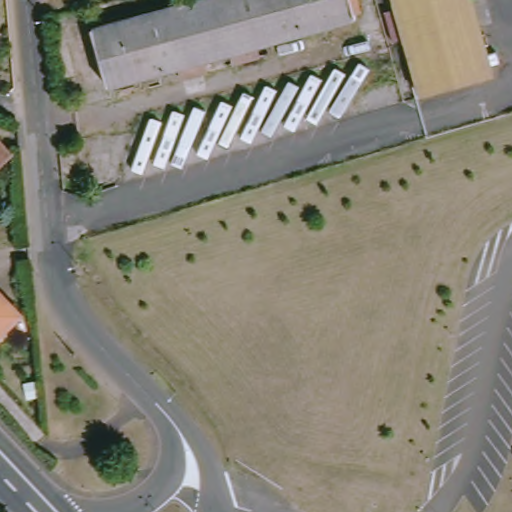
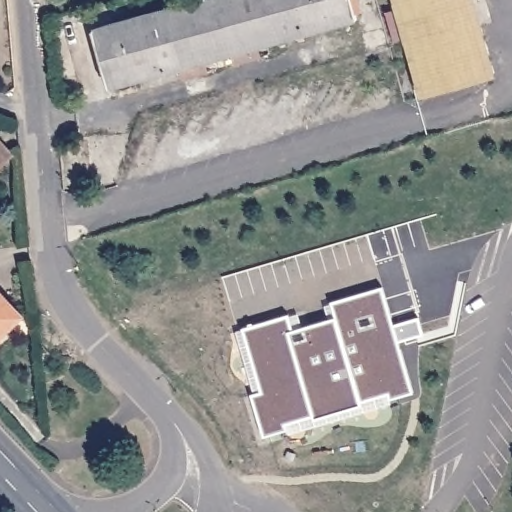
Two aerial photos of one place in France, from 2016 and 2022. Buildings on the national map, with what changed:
unchanged [(208,73),(185,78),(181,69),(110,86),(97,32),(223,0),(355,0),(360,20),(205,62),(208,73)]
unchanged [(424,96),(399,0),(474,0),(495,79),(424,96)]
unchanged [(0,166),(0,143),(10,154),(0,166)]
unchanged [(25,317),(0,340),(0,288),(25,317)]
new [(263,439),(250,398),(260,394),(243,329),(287,317),(292,334),(335,323),(330,302),(385,290),(413,396),(263,439)]

